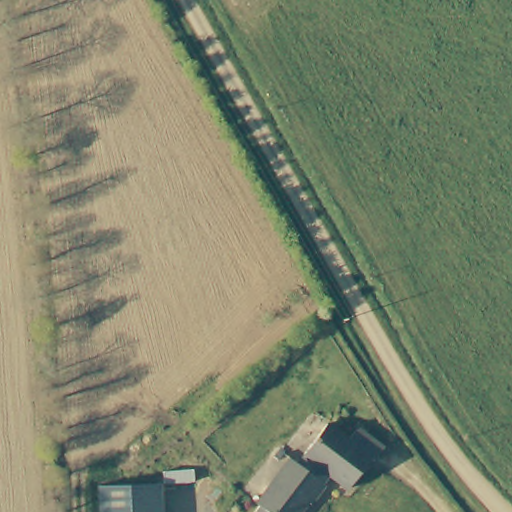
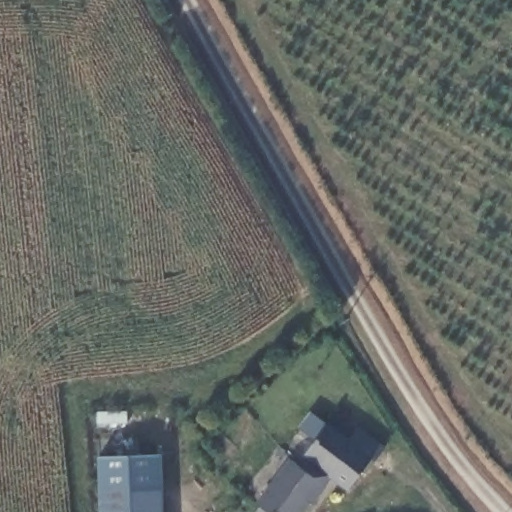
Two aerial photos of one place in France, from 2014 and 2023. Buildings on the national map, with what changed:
unchanged [(302,461),(308,453),(307,452),(331,422),(353,439),(365,427),(389,447),(379,460),(376,458),(352,487),(328,469),(322,477),(302,461)]
new [(99,458),(161,455),(163,486),(100,487),(99,458)]
unchanged [(302,461),(322,477),(330,482),(315,502),(312,500),(303,512),(255,512),(262,502),(260,501),(295,455),(302,461)]
unchanged [(100,487),(165,486),(165,512),(100,512),(100,487)]

